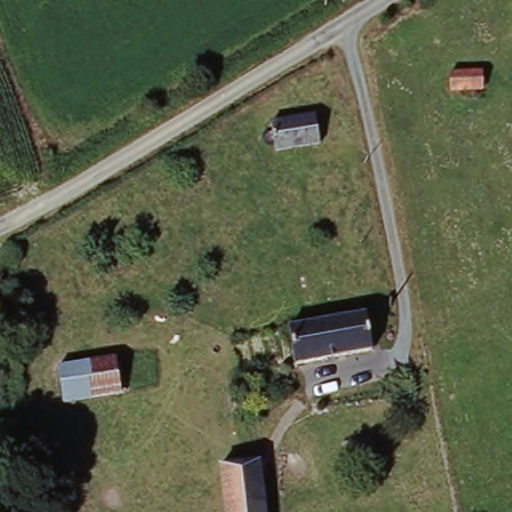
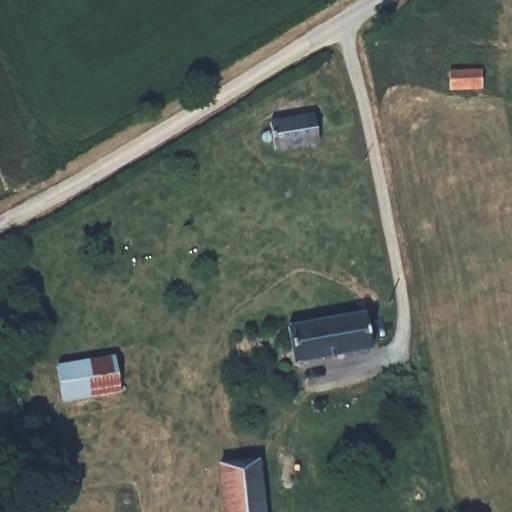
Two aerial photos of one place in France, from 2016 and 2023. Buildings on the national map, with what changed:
unchanged [(479,72),(479,90),(449,90),(449,73),(479,72)]
unchanged [(279,133),(279,127),(322,120),(327,146),(281,156),(282,149),(269,152),(267,136),(279,133)]
unchanged [(291,332),(369,318),(376,356),(299,367),(291,332)]
unchanged [(118,364),(124,399),(65,408),(61,373),(118,364)]
unchanged [(266,512),(228,512),(224,469),(261,466),(266,512)]

